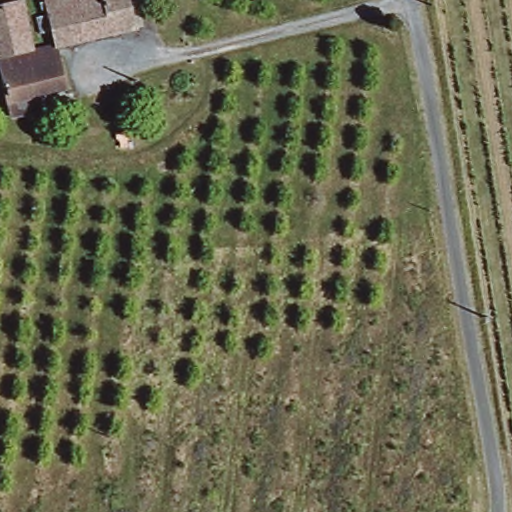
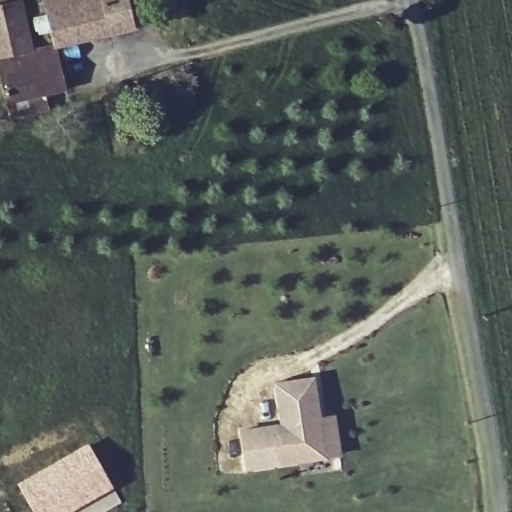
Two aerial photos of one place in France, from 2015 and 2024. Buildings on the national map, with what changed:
unchanged [(0,82),(0,0),(20,0),(30,51),(51,47),(59,88),(4,100),(0,82)]
unchanged [(136,31),(51,47),(41,0),(131,0),(136,31)]
new [(343,456),(243,472),(237,432),(280,425),(274,384),(317,377),(322,417),(336,415),(343,456)]
new [(86,444),(112,487),(68,512),(33,512),(17,483),(86,444)]

